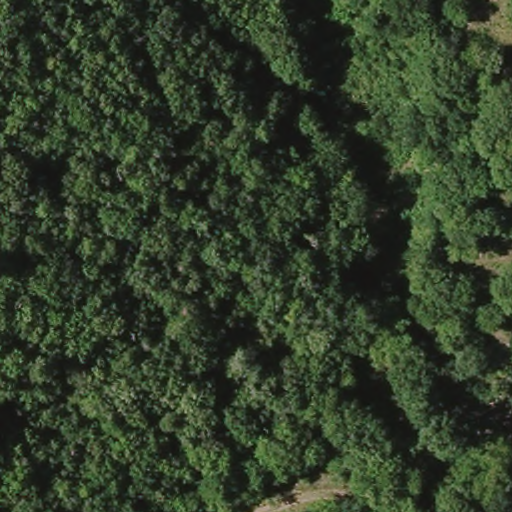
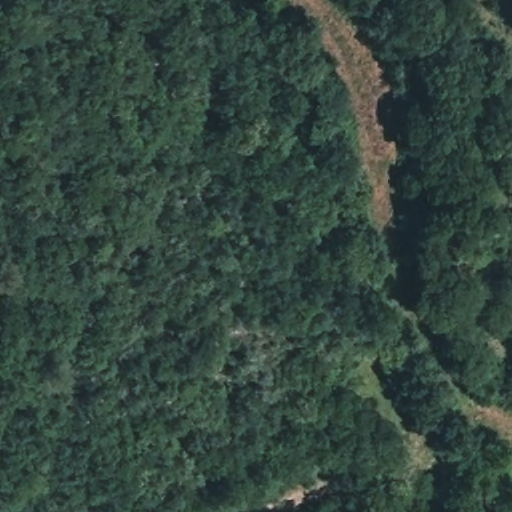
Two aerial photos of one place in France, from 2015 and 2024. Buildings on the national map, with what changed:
unchanged [(512,433),(512,463),(498,460),(505,432),(512,433)]

